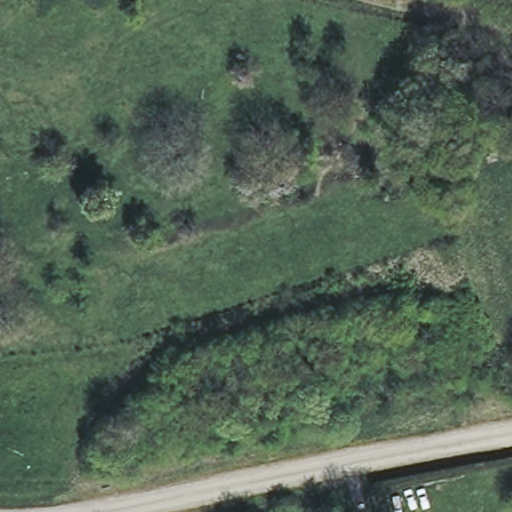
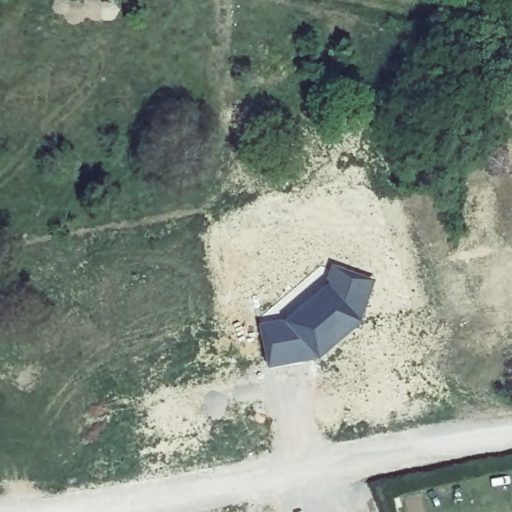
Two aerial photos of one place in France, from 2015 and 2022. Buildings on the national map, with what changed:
new [(284,321),(327,284),(332,265),(375,280),(362,323),(319,359),(269,367),(259,324),(284,321)]

